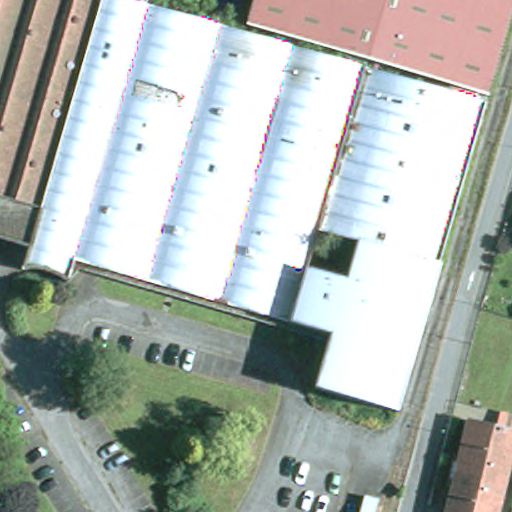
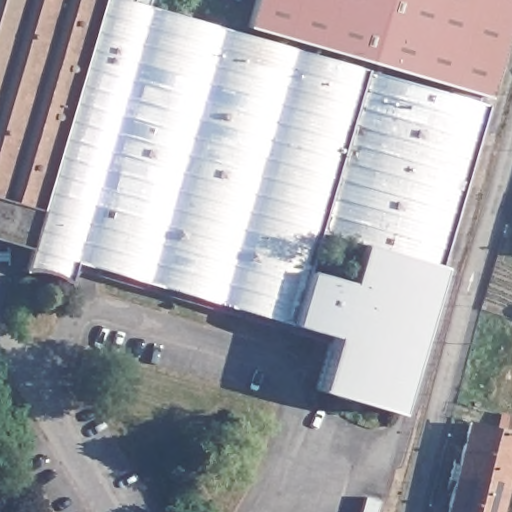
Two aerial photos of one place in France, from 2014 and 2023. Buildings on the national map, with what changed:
unchanged [(367,63),(447,87),(450,80),(245,21),(252,0),(512,0),(512,3),(486,91),(477,88),(474,96),(485,99),(437,262),(357,238),(315,226),(304,265),(297,284),(287,319),(72,256),(67,276),(59,272),(50,268),(42,266),(32,264),(22,263),(37,261),(41,247),(0,235),(0,0),(147,0),(367,65),(367,63)]
unchanged [(297,284),(304,265),(344,277),(357,238),(437,262),(395,405),(399,406),(397,410),(382,405),(383,403),(313,382),(329,331),(287,319),(297,284)]
unchanged [(505,474),(450,460),(452,452),(458,453),(468,413),(495,420),(500,403),(512,406),(512,445),(505,474)]
unchanged [(444,510),(455,470),(447,468),(450,460),(505,474),(496,512),(450,512),(444,510)]
unchanged [(379,500),(376,512),(360,512),(364,496),(379,500)]

